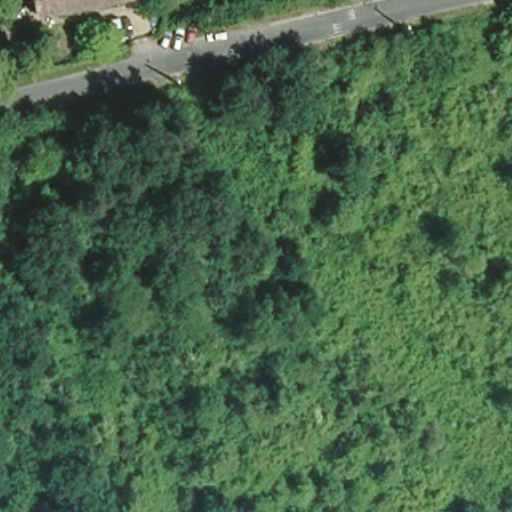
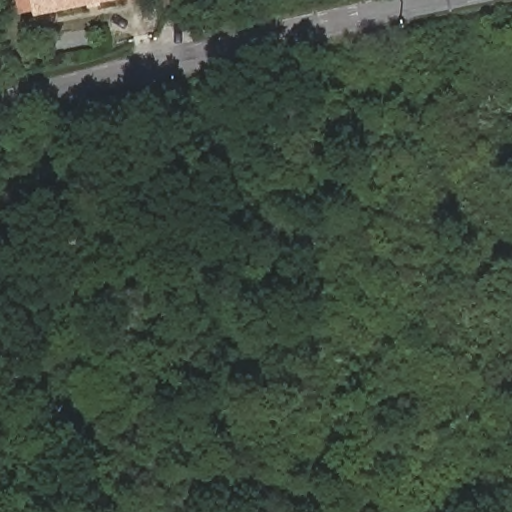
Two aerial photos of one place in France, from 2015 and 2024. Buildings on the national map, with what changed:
unchanged [(117,5),(84,13),(81,7),(31,16),(28,0),(115,0),(117,5)]

